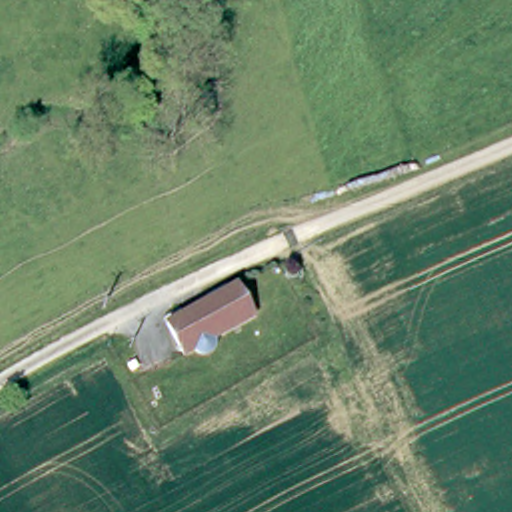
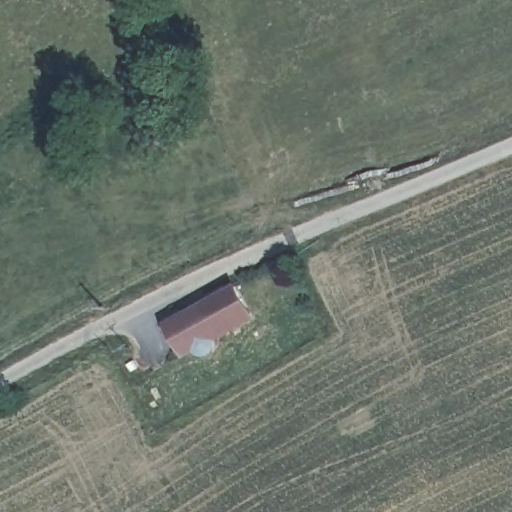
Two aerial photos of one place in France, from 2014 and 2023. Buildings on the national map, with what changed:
unchanged [(254,320),(219,338),(219,339),(213,342),(214,344),(214,347),(213,350),(211,353),(210,355),(207,356),(205,356),(204,356),(201,356),(199,355),(197,353),(195,351),(183,357),(167,325),(239,290),(254,320)]

